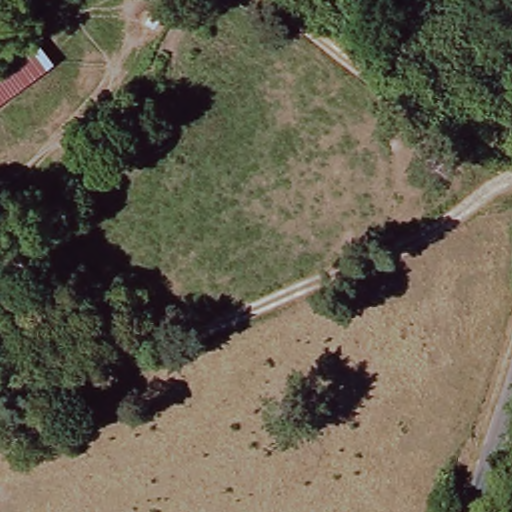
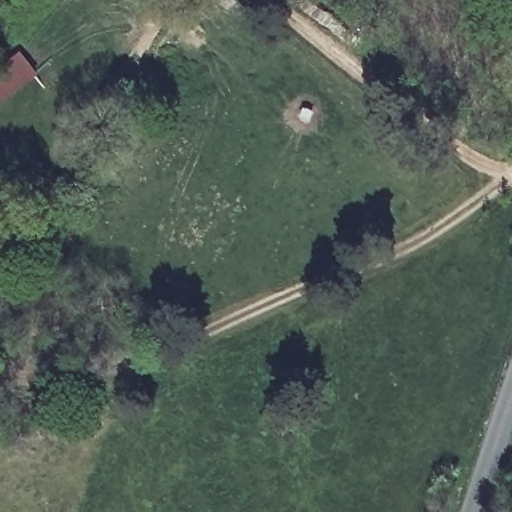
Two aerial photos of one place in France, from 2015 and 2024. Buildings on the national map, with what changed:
unchanged [(23,43),(43,68),(0,101),(0,61),(23,43)]

